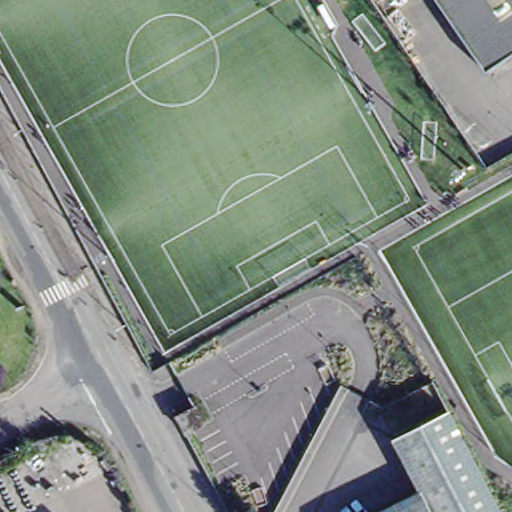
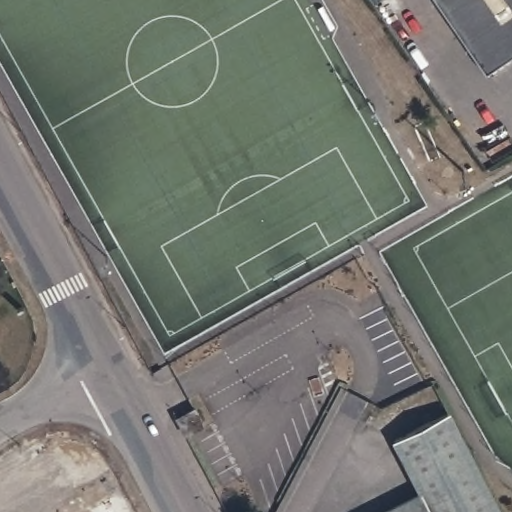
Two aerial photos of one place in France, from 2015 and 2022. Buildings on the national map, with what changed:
unchanged [(510,56),(486,73),(435,0),(512,0),(512,55),(510,56)]
unchanged [(398,436),(451,409),(502,512),(434,512),(424,490),(398,436)]
unchanged [(434,512),(381,512),(424,490),(434,512)]

